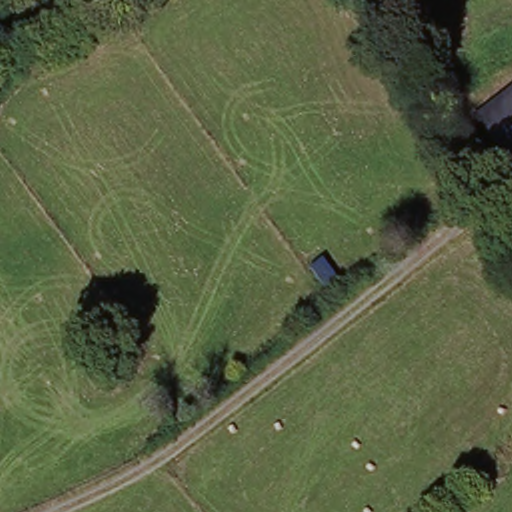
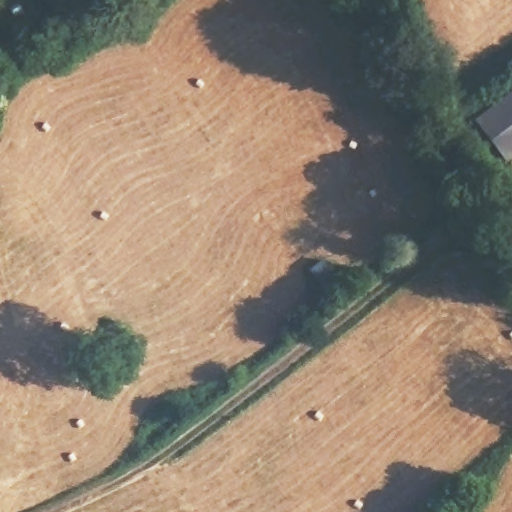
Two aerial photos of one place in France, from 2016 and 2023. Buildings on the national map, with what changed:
unchanged [(476,116),(512,89),(512,154),(506,159),(476,116)]

